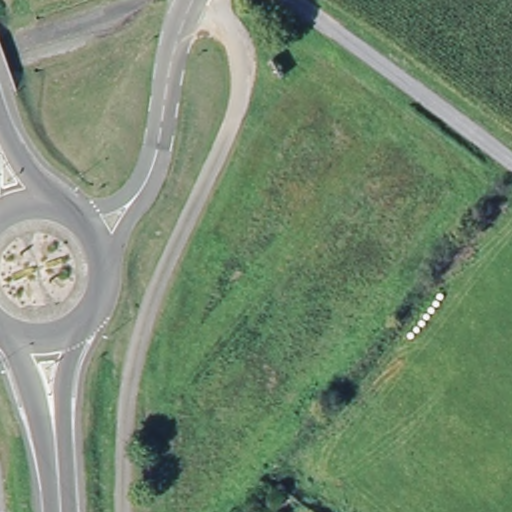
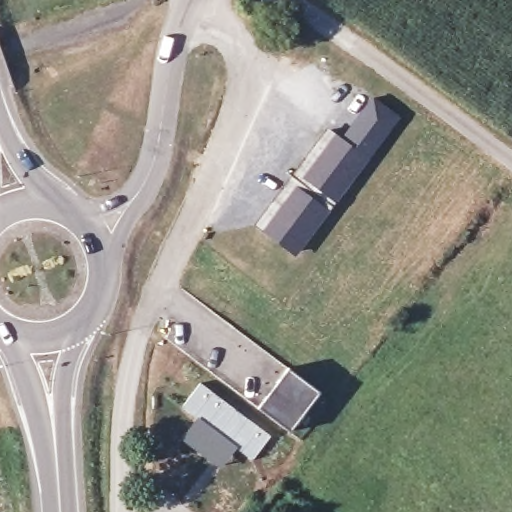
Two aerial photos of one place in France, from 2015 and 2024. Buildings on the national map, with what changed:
new [(329,127),(366,156),(331,202),(296,175),(294,174),(329,127)]
new [(277,200),(275,197),(286,182),(288,185),(296,175),(331,202),(295,248),(261,221),(277,200)]
new [(285,364),(316,388),(287,427),(255,403),(285,364)]
new [(199,383),(269,437),(251,461),(233,447),(197,419),(181,407),(199,383)]
new [(197,419),(233,447),(219,467),(182,438),(197,419)]

